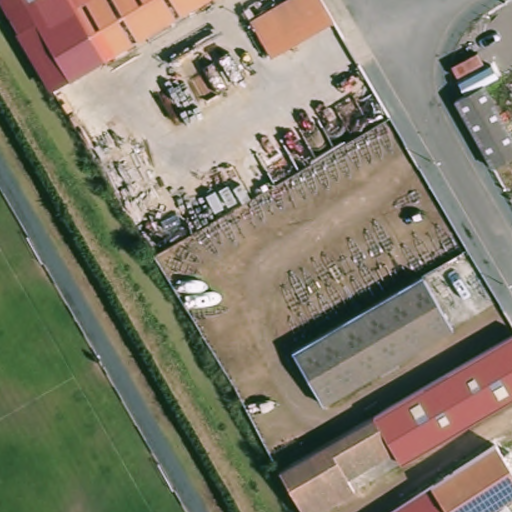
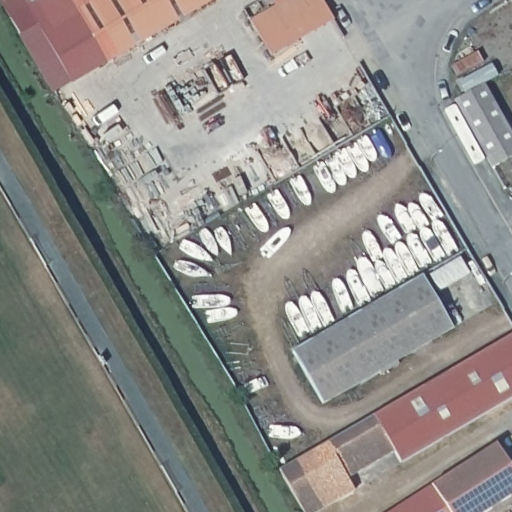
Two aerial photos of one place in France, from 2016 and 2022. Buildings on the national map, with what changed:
unchanged [(72,75),(25,4),(11,13),(3,0),(66,0),(105,62),(72,75)]
unchanged [(66,0),(206,0),(105,62),(66,0)]
unchanged [(328,0),(340,20),(290,49),(270,14),(294,0),(328,0)]
unchanged [(479,87),(512,143),(512,156),(492,167),(460,111),(454,100),(479,87)]
unchanged [(452,327),(323,402),(291,349),(420,274),(452,327)]
unchanged [(401,402),(425,388),(433,383),(450,374),(466,364),(482,355),(512,338),(512,400),(509,402),(493,411),(477,420),(466,427),(445,439),(431,447),(424,451),(404,462),(397,451),(377,416),(387,409),(401,402)]
unchanged [(294,463),(310,454),(317,449),(325,446),(340,437),(353,429),(355,428),(370,419),(377,416),(397,451),(391,454),(376,463),(361,471),(351,477),(357,489),(352,493),(337,501),(333,503),(320,510),(317,512),(307,512),(282,470),(294,463)]
unchanged [(503,444),(512,457),(512,501),(495,512),(466,512),(452,490),(446,480),(448,479),(482,457),(488,453),(503,444)]
unchanged [(446,480),(452,490),(466,512),(395,512),(446,480)]

